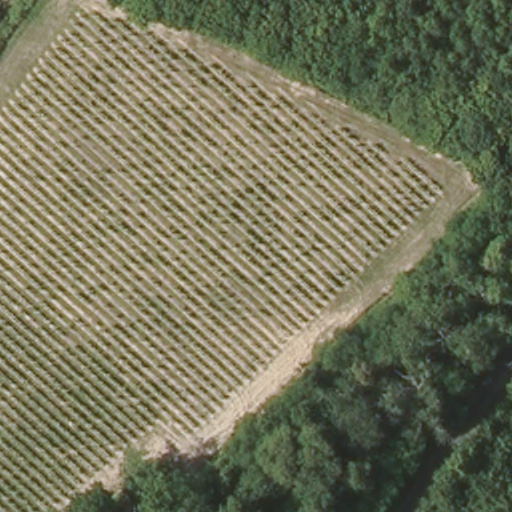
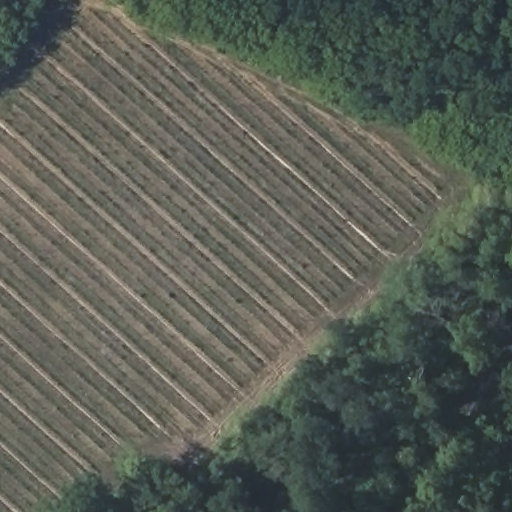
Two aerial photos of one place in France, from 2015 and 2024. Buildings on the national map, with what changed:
[]

